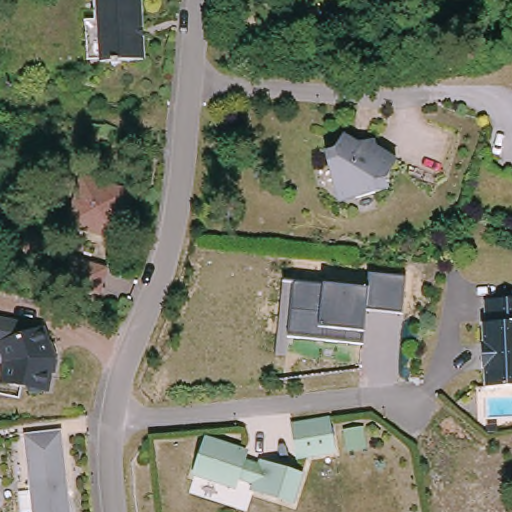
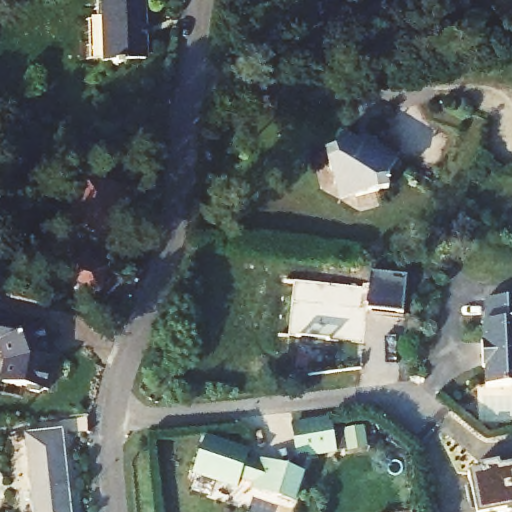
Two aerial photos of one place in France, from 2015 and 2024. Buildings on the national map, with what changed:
unchanged [(107,16),(106,0),(149,0),(152,55),(127,57),(127,60),(120,61),(120,57),(110,58),(110,55),(96,56),(93,17),(107,16)]
unchanged [(395,172),(398,181),(368,196),(362,180),(346,187),(332,157),(342,153),(347,137),(362,142),(367,152),(375,147),(378,142),(403,152),(395,172)]
unchanged [(114,231),(67,219),(80,172),(127,186),(114,231)]
unchanged [(103,291),(72,283),(78,258),(110,266),(103,291)]
unchanged [(325,285),(368,288),(369,274),(407,278),(403,314),(366,311),(364,333),(363,345),(288,338),(293,283),(325,285)]
unchanged [(512,295),(512,385),(490,385),(490,364),(485,363),(483,339),(488,339),(487,316),(491,316),(490,296),(512,295)]
unchanged [(70,353),(70,355),(75,356),(72,367),(68,366),(63,385),(60,385),(55,388),(47,386),(43,381),(19,376),(23,355),(18,340),(20,337),(0,332),(0,309),(55,323),(57,326),(61,324),(70,353)]
unchanged [(339,446),(303,450),(297,416),(333,411),(339,446)]
unchanged [(66,512),(37,512),(28,433),(58,429),(66,512)]
unchanged [(201,434),(238,446),(233,460),(252,466),(255,457),(293,471),(286,496),(247,485),(250,477),(232,472),(227,483),(191,471),(201,434)]
new [(487,475),(487,471),(507,467),(508,472),(512,471),(512,512),(480,512),(474,478),(487,475)]

